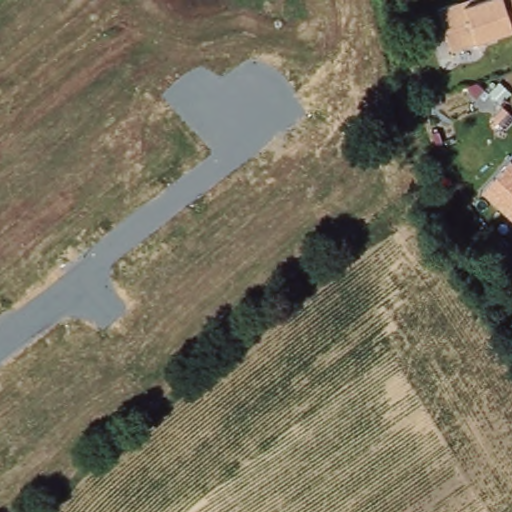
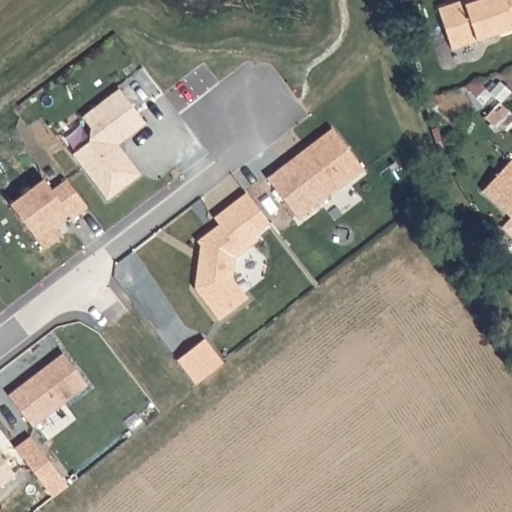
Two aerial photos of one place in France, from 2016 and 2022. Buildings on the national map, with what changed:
unchanged [(512,28),(452,47),(438,9),(467,0),(512,0),(512,28)]
new [(88,145),(90,132),(82,121),(119,93),(145,127),(117,149),(140,179),(107,204),(72,158),(88,145)]
new [(306,152),(331,133),(363,175),(297,225),(266,183),(287,166),(306,152)]
unchanged [(511,160),(512,160),(512,220),(482,192),(511,160)]
new [(35,237),(11,204),(43,180),(52,191),(65,180),(87,207),(73,219),(69,215),(54,227),(60,235),(43,249),(35,237)]
new [(199,250),(196,245),(218,229),(213,222),(245,197),(268,227),(252,240),(256,245),(234,262),(231,283),(246,302),(217,324),(193,292),(199,250)]
new [(195,335),(205,346),(214,358),(187,380),(169,356),(184,345),(195,335)]
new [(8,395),(62,353),(86,385),(32,427),(8,395)]
new [(54,498),(15,448),(30,437),(67,487),(54,498)]
new [(14,479),(0,490),(0,461),(14,479)]

